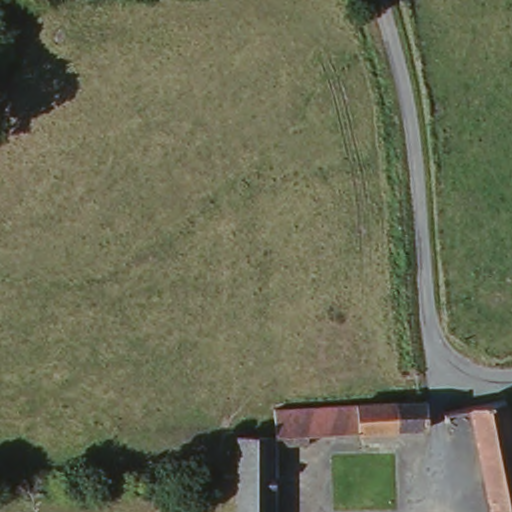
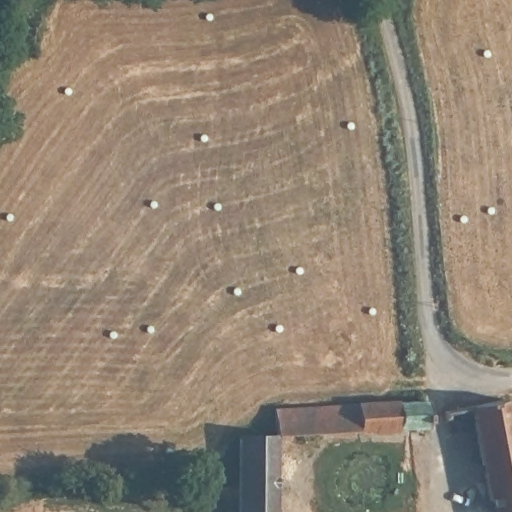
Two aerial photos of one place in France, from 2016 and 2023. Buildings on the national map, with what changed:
unchanged [(466,405),(509,402),(512,424),(512,512),(488,512),(476,430),(447,430),(445,407),(466,405)]
unchanged [(424,429),(272,435),(271,408),(292,407),(347,405),(421,405),(424,429)]
unchanged [(236,436),(272,435),(272,512),(236,512),(236,490),(236,436)]

